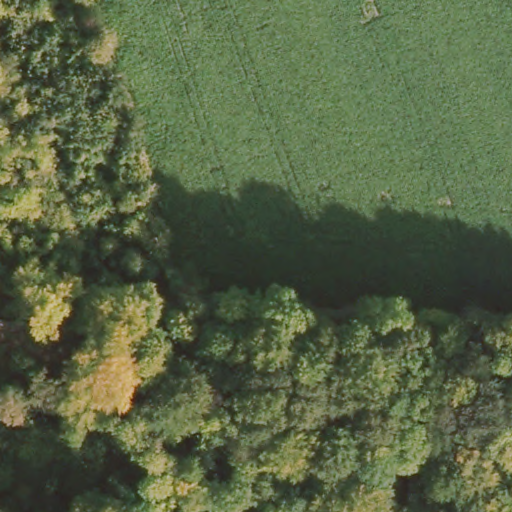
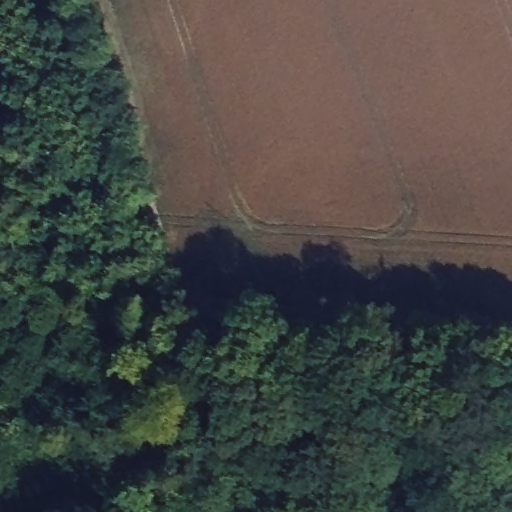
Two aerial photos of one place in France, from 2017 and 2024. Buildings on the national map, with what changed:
unchanged [(334,406),(332,426),(304,424),(305,404),(334,406)]

